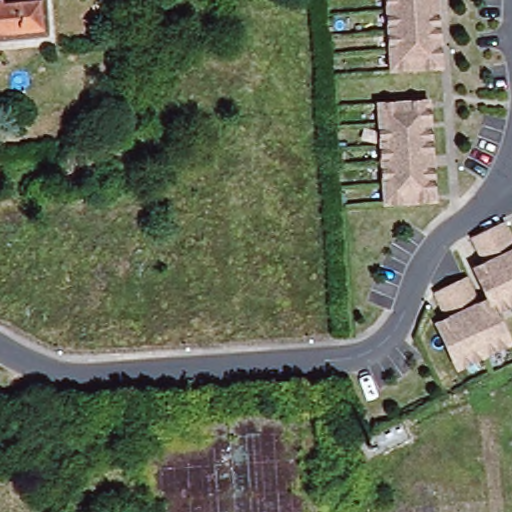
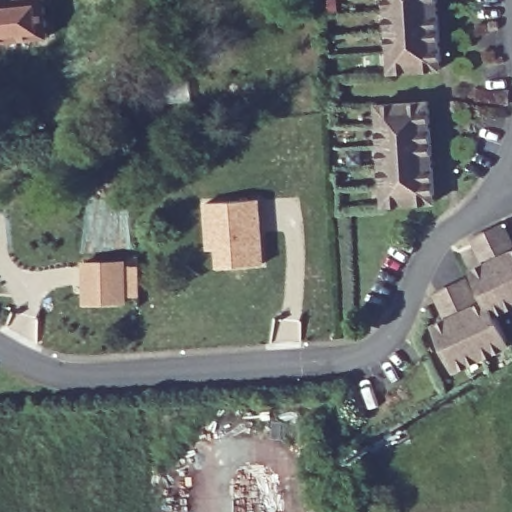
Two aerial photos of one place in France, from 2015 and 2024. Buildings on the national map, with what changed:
unchanged [(41,0),(44,37),(0,42),(0,0),(41,0)]
unchanged [(389,70),(384,0),(435,0),(439,67),(389,70)]
unchanged [(426,103),(433,203),(383,206),(376,106),(426,103)]
new [(255,200),(259,265),(216,268),(214,223),(199,224),(198,203),(255,200)]
unchanged [(474,303),(486,298),(474,273),(472,267),(483,262),(471,236),(500,222),(512,247),(512,308),(494,316),(508,346),(456,371),(436,328),(433,322),(445,317),(434,292),(462,279),(474,303)]
new [(82,304),(83,263),(123,265),(122,305),(82,304)]

